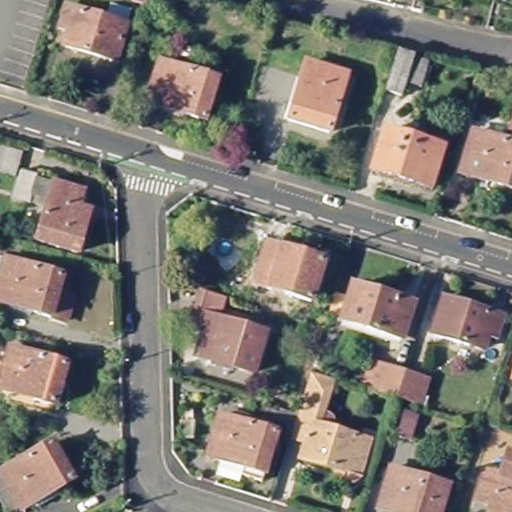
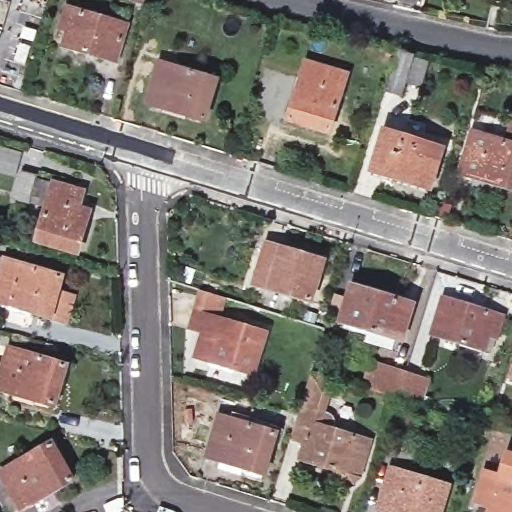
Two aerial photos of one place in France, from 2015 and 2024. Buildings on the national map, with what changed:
unchanged [(133,0),(154,0),(151,7),(132,0),(133,0)]
unchanged [(452,0),(495,0),(493,8),(452,0)]
unchanged [(512,0),(512,2),(500,0),(512,0)]
unchanged [(70,48),(75,33),(66,31),(72,9),(112,21),(116,7),(135,13),(130,27),(120,63),(70,48)]
unchanged [(402,53),(431,62),(424,87),(409,82),(405,96),(390,92),(402,53)]
unchanged [(169,109),(152,104),(165,63),(221,81),(210,122),(189,115),(169,109)]
unchanged [(305,80),(310,63),(351,76),(334,133),(293,120),(299,100),(305,80)]
unchanged [(461,173),(473,132),(507,143),(512,128),(512,189),(498,185),(477,178),(461,173)]
unchanged [(377,173),(389,131),(446,147),(433,190),(393,178),(377,173)]
unchanged [(19,155),(11,178),(0,175),(0,149),(19,155)]
unchanged [(79,239),(72,259),(32,246),(45,206),(30,201),(27,208),(10,202),(18,173),(36,180),(35,184),(80,199),(74,215),(80,218),(85,220),(79,239)]
unchanged [(329,263),(315,304),(258,286),(271,244),(311,258),(329,263)]
unchanged [(6,300),(0,298),(0,254),(60,273),(55,288),(70,293),(61,318),(27,307),(6,300)]
unchanged [(360,288),(419,306),(411,328),(402,325),(397,339),(348,324),(360,288)]
unchanged [(200,357),(206,334),(198,332),(190,329),(196,311),(202,290),(234,300),(227,321),(270,334),(257,376),(236,369),(217,362),(200,357)]
unchanged [(450,299),(509,318),(502,337),(493,334),(488,351),(438,335),(450,299)]
unchanged [(19,395),(2,390),(4,387),(0,386),(0,364),(10,367),(15,349),(73,369),(60,408),(39,401),(19,395)]
unchanged [(425,402),(402,395),(366,384),(375,358),(410,370),(433,377),(425,402)]
unchanged [(321,423),(380,442),(369,477),(360,482),(346,478),(344,470),(310,459),(314,443),(301,439),(308,416),(321,373),(336,378),(325,410),(321,423)]
unchanged [(270,416),(256,412),(258,402),(272,406),(270,416)]
unchanged [(410,408),(424,412),(416,437),(401,432),(410,408)]
unchanged [(218,456),(230,416),(286,434),(271,482),(250,476),(231,469),(233,461),(218,456)]
unchanged [(42,502),(25,511),(6,475),(58,446),(79,483),(60,492),(42,502)]
unchanged [(491,500),(475,495),(490,446),(505,450),(505,447),(512,449),(512,512),(488,512),(491,500)]
unchanged [(383,510),(397,469),(452,487),(445,512),(390,512),(383,510)]

